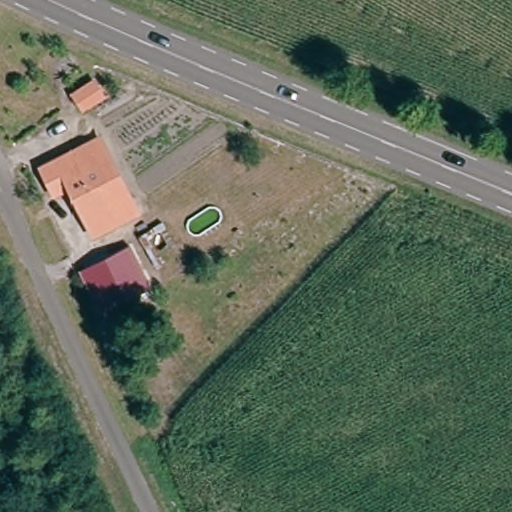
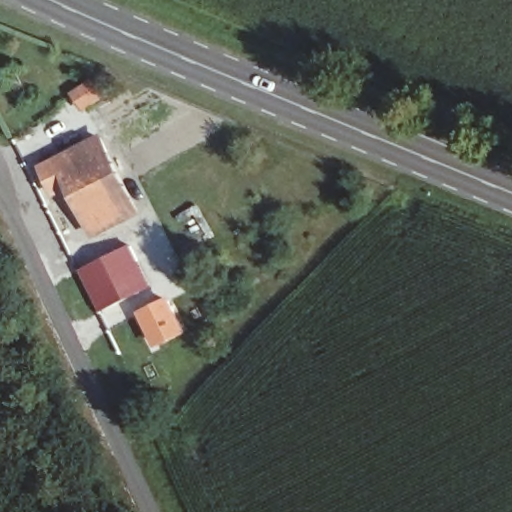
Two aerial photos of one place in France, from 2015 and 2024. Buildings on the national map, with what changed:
unchanged [(78,192),(63,201),(47,174),(63,166),(91,149),(105,140),(112,153),(149,213),(139,219),(107,238),(78,192)]
unchanged [(124,246),(151,282),(107,317),(79,281),(124,246)]
new [(139,313),(170,297),(188,333),(157,349),(139,313)]

